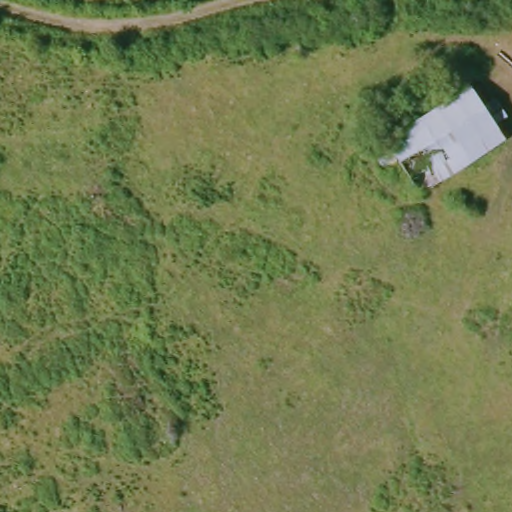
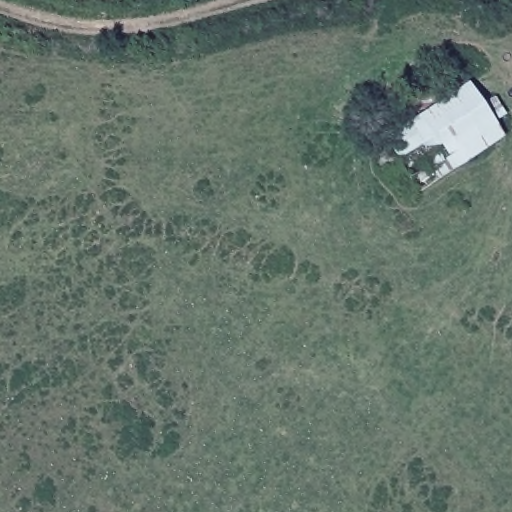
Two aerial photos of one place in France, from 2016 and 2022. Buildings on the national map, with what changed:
unchanged [(382,140),(465,85),(481,107),(492,100),(507,117),(496,128),(502,137),(419,194),(382,140)]

